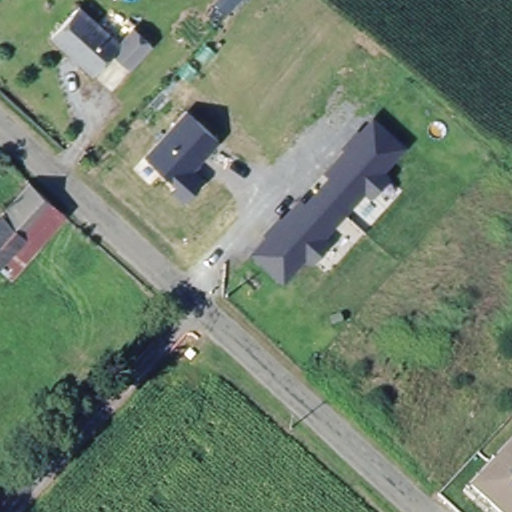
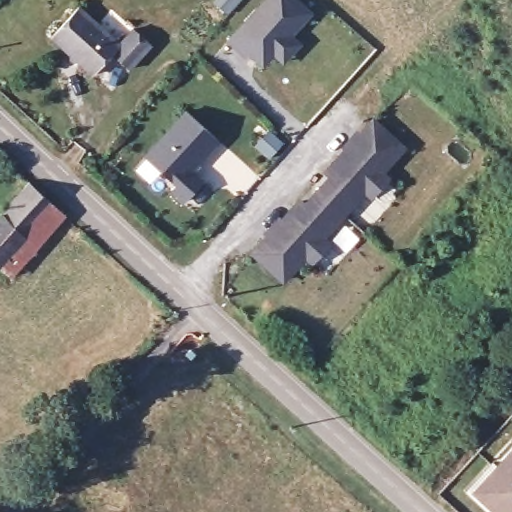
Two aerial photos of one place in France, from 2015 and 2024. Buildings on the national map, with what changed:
unchanged [(243,0),(224,20),(213,9),(221,0),(243,0)]
new [(273,56),(266,65),(259,65),(244,52),(240,56),(228,44),(266,0),(292,0),(309,15),(289,39),(299,47),(283,65),(273,56)]
unchanged [(72,6),(117,46),(129,31),(148,46),(126,71),(109,55),(90,78),(45,36),(72,6)]
unchanged [(219,141),(193,169),(204,180),(187,199),(142,152),(186,108),(219,141)]
unchanged [(249,254),(373,117),(408,147),(386,174),(391,179),(371,202),(366,198),(329,238),(334,243),(312,267),(307,261),(283,285),(249,254)]
unchanged [(58,211),(53,216),(49,214),(0,269),(0,218),(30,186),(58,211)]
unchanged [(0,273),(0,269),(49,214),(53,216),(58,211),(67,219),(9,283),(0,273)]
unchanged [(473,494),(512,452),(512,512),(494,512),(473,494)]

